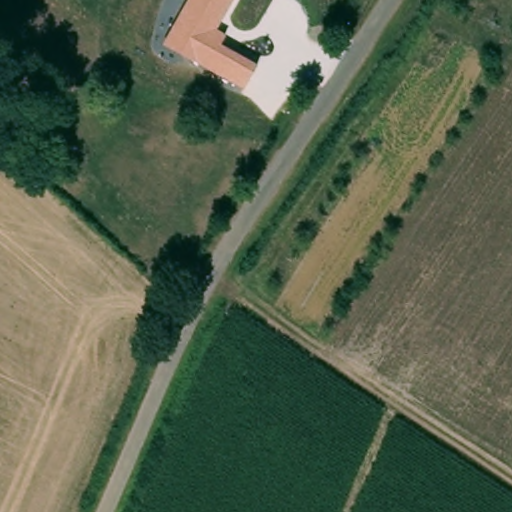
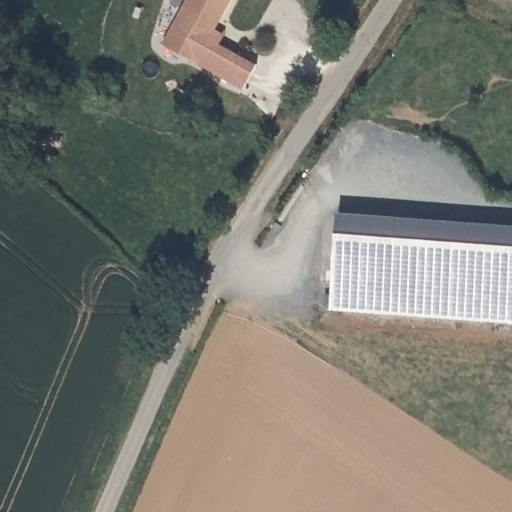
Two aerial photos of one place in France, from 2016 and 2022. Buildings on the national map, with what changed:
unchanged [(231,0),(216,29),(225,34),(220,43),(256,64),(242,89),(190,59),(164,44),(187,0),(231,0)]
new [(339,213),(512,226),(512,322),(331,309),(339,213)]

